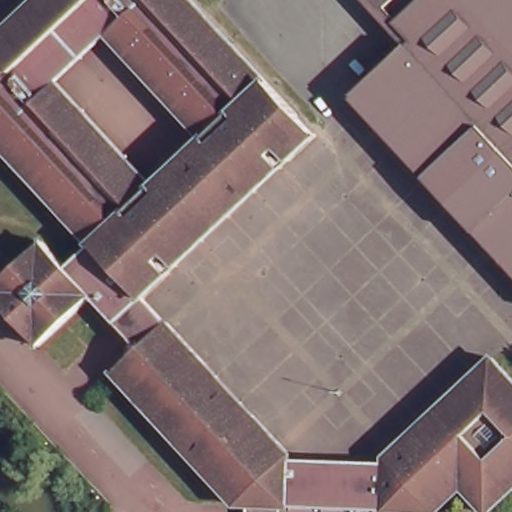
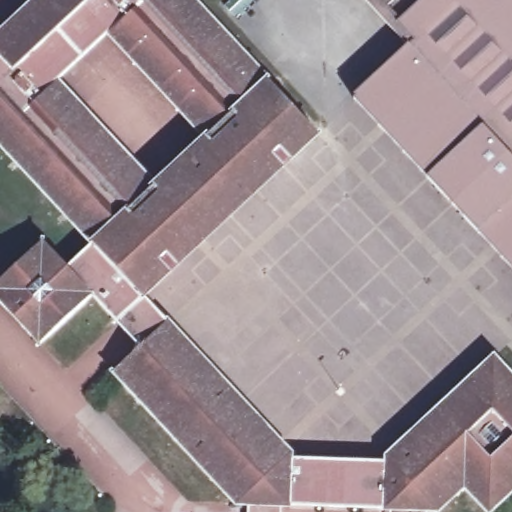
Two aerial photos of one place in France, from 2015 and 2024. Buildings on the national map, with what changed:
unchanged [(95,297),(42,346),(0,301),(0,283),(45,242),(71,268),(95,245),(0,145),(0,34),(1,35),(39,0),(195,0),(320,135),(147,298),(119,323),(95,297)]
unchanged [(361,100),(363,98),(360,95),(415,45),(371,0),(512,0),(512,262),(361,100)]
unchanged [(142,347),(119,323),(147,298),(169,323),(142,347)]
unchanged [(250,503),(237,503),(114,373),(142,347),(169,323),(293,453),(293,459),(387,462),(387,457),(496,358),(512,376),(512,493),(492,512),(489,512),(467,487),(440,511),(283,505),(250,503)]
unchanged [(283,505),(283,512),(249,512),(250,503),(283,505)]

